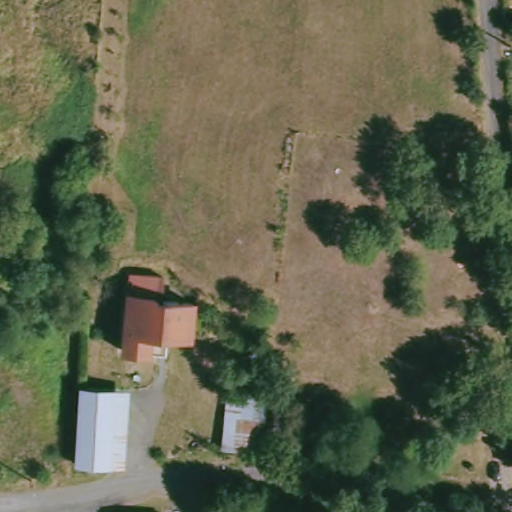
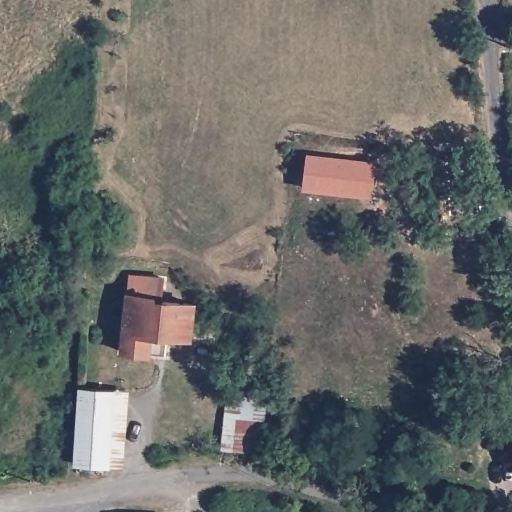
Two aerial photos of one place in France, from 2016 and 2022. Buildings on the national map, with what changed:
new [(375,169),(372,200),(302,190),(306,160),(375,169)]
unchanged [(58,285),(0,283),(0,262),(58,265),(58,285)]
unchanged [(157,276),(156,299),(188,301),(185,335),(162,333),(162,347),(154,347),(154,352),(117,350),(122,274),(157,276)]
unchanged [(269,380),(261,444),(217,441),(225,379),(269,380)]
unchanged [(118,386),(114,458),(82,455),(84,383),(118,386)]
unchanged [(162,506),(162,512),(114,512),(114,508),(162,506)]

